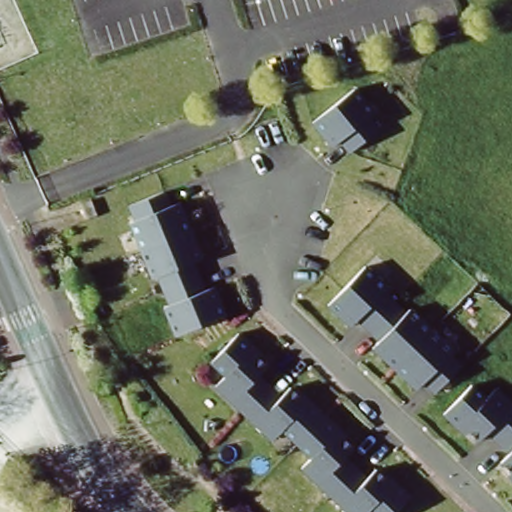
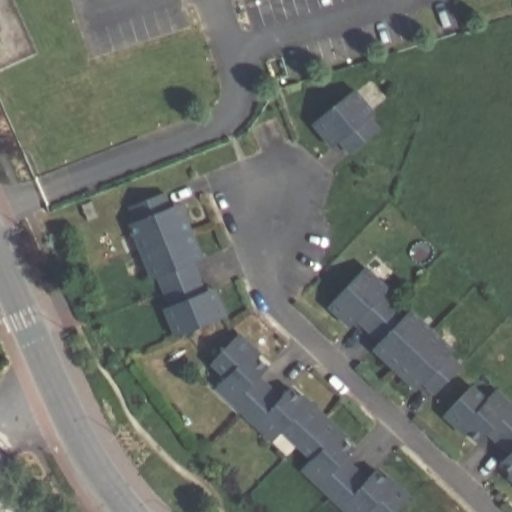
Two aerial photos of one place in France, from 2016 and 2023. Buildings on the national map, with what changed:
unchanged [(312,124),(355,88),(375,112),(369,117),(380,129),(349,153),(339,141),(331,147),(312,124)]
unchanged [(133,222),(126,209),(172,189),(178,204),(181,202),(204,257),(192,262),(205,291),(215,287),(227,315),(174,336),(163,308),(169,305),(157,276),(151,278),(129,223),(133,222)]
unchanged [(93,197),(99,212),(91,217),(84,201),(93,197)]
unchanged [(367,265),(389,287),(384,292),(406,312),(411,307),(456,350),(451,355),(462,366),(434,395),(422,383),(416,390),(372,348),(378,342),(356,321),(350,327),(328,306),(367,265)]
unchanged [(311,458),(281,431),(271,442),(215,387),(225,377),(208,362),(237,334),(271,367),(262,375),(284,395),(294,386),(356,447),(348,456),(370,475),(379,467),(411,497),(396,512),(367,512),(344,512),(300,470),(311,458)]
unchanged [(488,394),(496,386),(512,401),(512,480),(508,476),(512,472),(501,461),(508,454),(487,433),(477,444),(443,415),(474,382),(488,394)]

